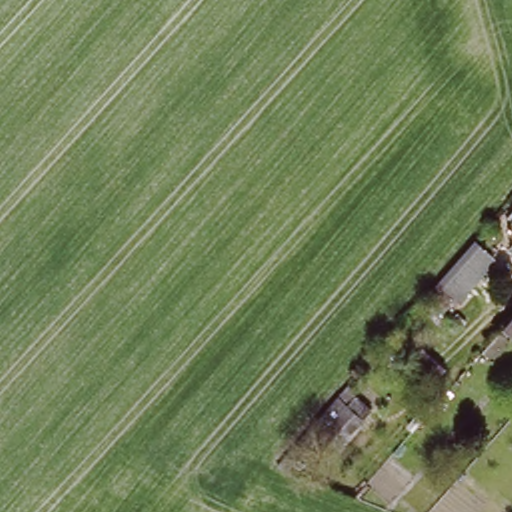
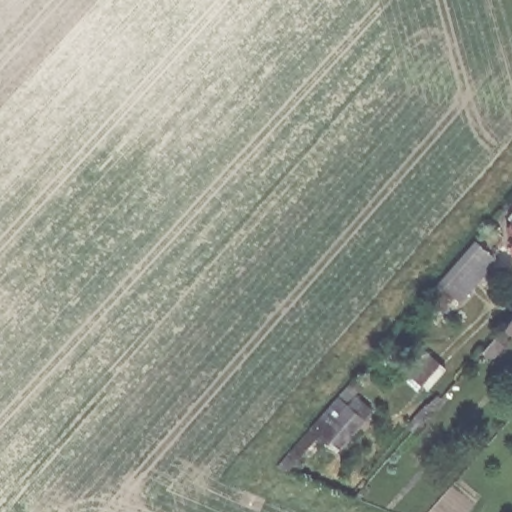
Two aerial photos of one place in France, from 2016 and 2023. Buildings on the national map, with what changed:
unchanged [(481,248),(498,263),(462,304),(445,289),(481,248)]
unchanged [(505,330),(495,322),(511,300),(512,300),(512,335),(505,330)]
unchanged [(440,374),(424,392),(412,383),(428,364),(440,374)]
unchanged [(342,398),(367,420),(339,451),(314,429),(342,398)]

